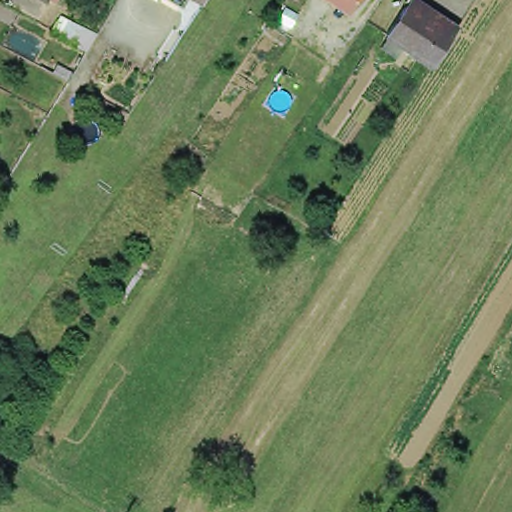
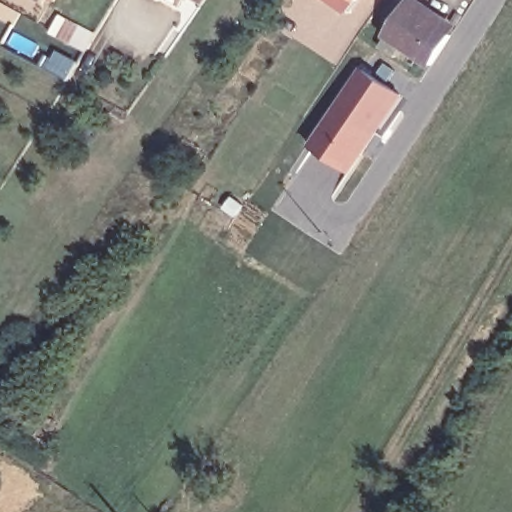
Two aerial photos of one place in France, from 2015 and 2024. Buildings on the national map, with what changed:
unchanged [(48,4),(41,0),(50,0),(48,4)]
unchanged [(186,1),(183,0),(187,0),(186,1)]
unchanged [(358,6),(349,0),(361,0),(358,6)]
unchanged [(391,34),(410,5),(434,21),(454,35),(435,64),(414,49),(408,45),(399,58),(384,47),(392,35),(391,34)]
unchanged [(61,16),(81,27),(71,45),(51,34),(53,32),(61,16)]
new [(362,66),(374,74),(386,62),(397,71),(388,83),(404,96),(349,173),(309,144),(362,66)]

